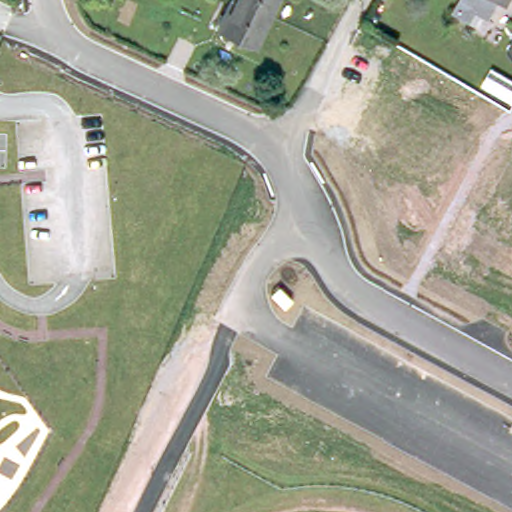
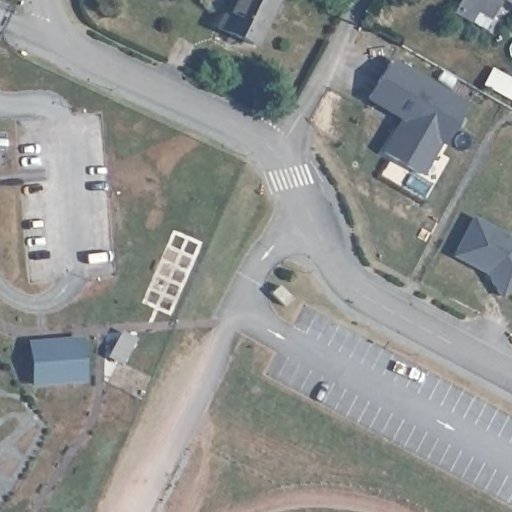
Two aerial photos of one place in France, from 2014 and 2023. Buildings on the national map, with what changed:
unchanged [(218,28),(231,0),(233,0),(261,11),(268,15),(253,45),(218,28)]
unchanged [(269,13),(268,15),(261,11),(233,0),(275,0),(269,13)]
unchanged [(497,18),(466,0),(507,0),(497,18)]
demolished [(414,49),(494,95),(512,105),(512,136),(401,72),(414,49)]
new [(423,177),(381,152),(399,120),(365,102),(389,60),(467,104),(423,177)]
unchanged [(512,83),(512,105),(494,95),(504,79),(512,83)]
new [(487,273),(453,256),(473,215),(512,237),(512,289),(500,296),(487,273)]
new [(26,342),(81,337),(84,382),(30,386),(26,342)]

